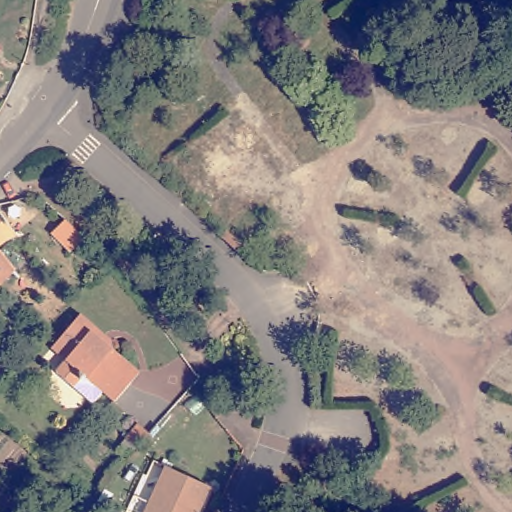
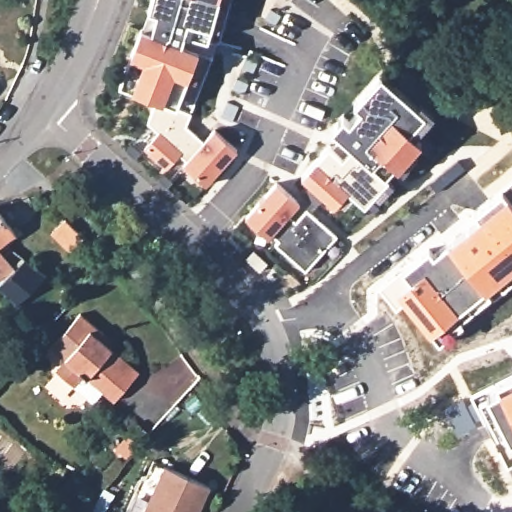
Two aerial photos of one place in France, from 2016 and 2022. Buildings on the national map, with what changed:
new [(216,133),(238,153),(207,188),(184,168),(188,164),(181,158),(168,172),(146,152),(160,136),(148,126),(158,103),(120,89),(142,32),(152,36),(157,16),(149,14),(152,0),(232,0),(220,46),(216,45),(213,59),(214,59),(187,129),(205,145),(216,133)]
new [(303,179),(330,148),(333,151),(342,141),(332,132),(344,119),(350,124),(361,112),(355,106),(381,77),(426,116),(410,134),(422,144),(398,171),(396,168),(386,178),(389,181),(365,208),(349,193),(336,208),(326,200),(317,209),(303,197),(312,187),(303,179)]
demolished [(224,138),(237,153),(250,141),(266,159),(277,174),(263,185),(243,201),(232,187),(217,199),(202,181),(217,169),(204,154),(224,138)]
new [(435,252),(462,231),(479,217),(473,210),(507,182),(493,166),(512,150),(512,285),(439,344),(407,304),(398,312),(377,288),(429,246),(435,252)]
new [(301,206),(290,218),(297,224),(308,212),(338,239),(307,274),(276,247),(280,244),(273,237),(269,241),(247,221),(278,186),(301,206)]
unchanged [(18,269),(0,283),(0,211),(18,235),(2,248),(5,251),(18,269)]
unchanged [(72,254),(53,235),(66,221),(70,225),(86,240),(72,254)]
demolished [(229,234),(238,243),(241,240),(247,246),(238,255),(222,240),(229,234)]
unchanged [(80,392),(62,376),(72,365),(57,353),(88,318),(100,330),(98,334),(119,352),(127,359),(146,375),(134,390),(120,406),(111,399),(101,409),(80,392)]
new [(477,399),(485,395),(499,389),(495,382),(512,373),(512,465),(509,467),(497,434),(477,399)]
unchanged [(126,440),(138,427),(149,437),(137,450),(126,440)]
unchanged [(215,488),(204,512),(148,512),(170,466),(215,488)]

